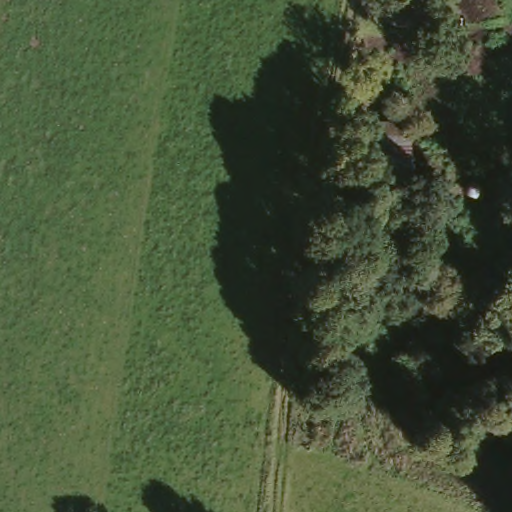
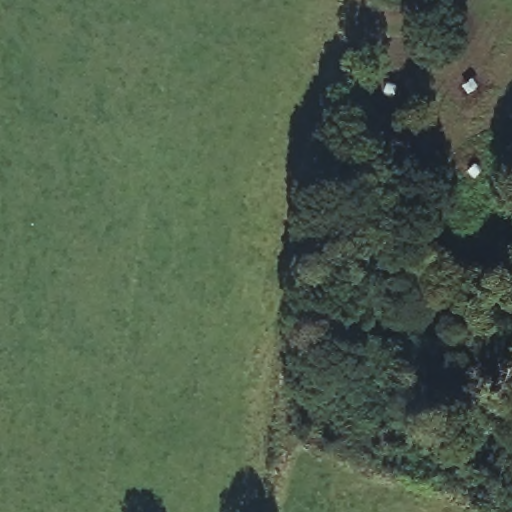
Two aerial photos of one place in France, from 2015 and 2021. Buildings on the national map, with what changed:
unchanged [(384,183),(378,118),(407,116),(411,180),(384,183)]

